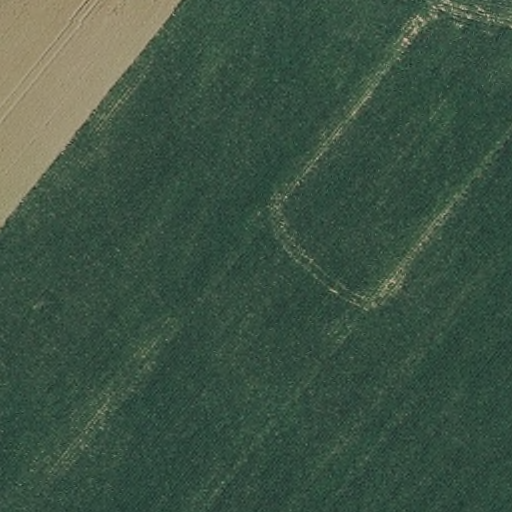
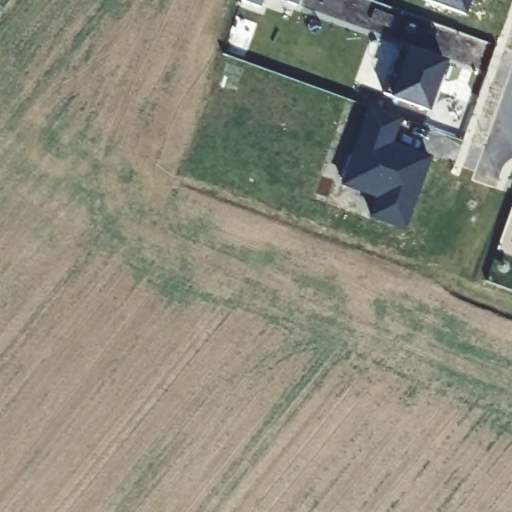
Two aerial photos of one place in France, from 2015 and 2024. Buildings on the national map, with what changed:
new [(260,7),(242,0),(263,0),(260,7)]
new [(297,6),(280,0),(299,0),(297,6)]
new [(465,17),(424,1),(424,0),(471,0),(465,17)]
new [(408,48),(447,62),(429,112),(390,97),(408,48)]
new [(369,108),(402,120),(392,144),(432,158),(405,232),(369,219),(377,200),(341,186),(369,108)]

